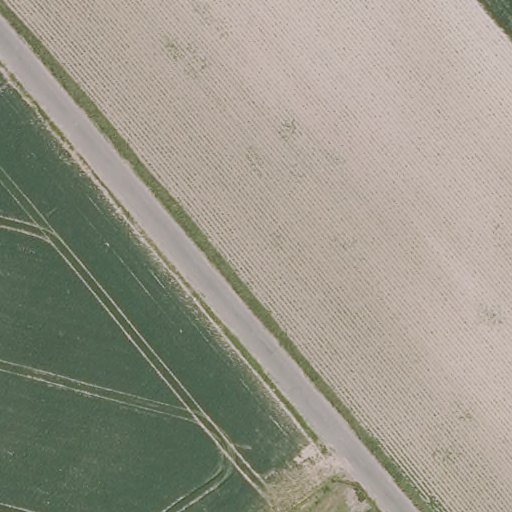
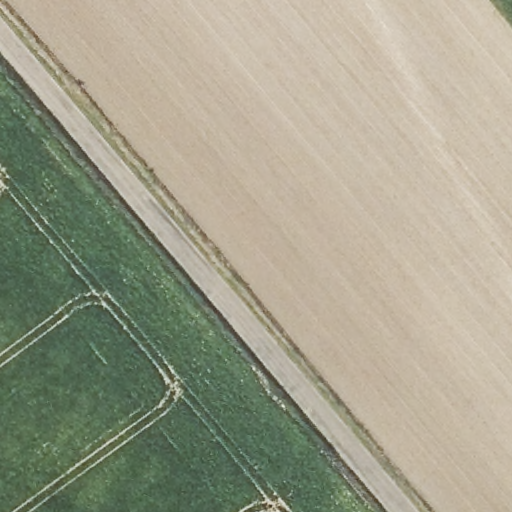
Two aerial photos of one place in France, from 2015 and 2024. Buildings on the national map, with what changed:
[]

